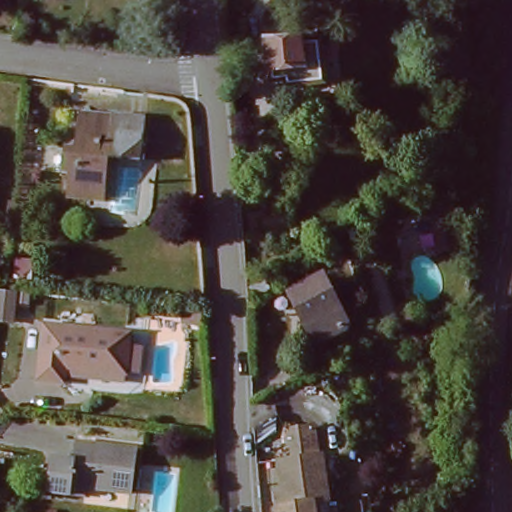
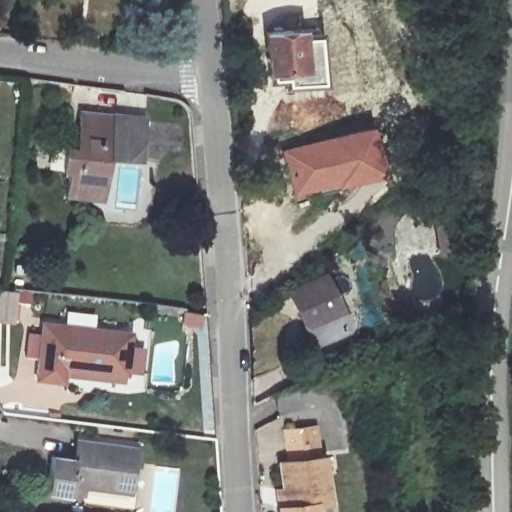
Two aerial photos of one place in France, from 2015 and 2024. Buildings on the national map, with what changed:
unchanged [(271,76),(266,36),(299,33),(302,73),(271,76)]
unchanged [(136,159),(102,155),(98,189),(86,188),(85,199),(64,197),(67,170),(60,170),(62,146),(73,149),(78,110),(141,119),(136,159)]
new [(373,122),(385,174),(325,189),(289,195),(277,149),(373,122)]
unchanged [(454,201),(457,253),(434,257),(430,206),(454,201)]
unchanged [(321,269),(349,327),(311,347),(283,290),(321,269)]
unchanged [(39,320),(122,332),(119,369),(60,361),(59,377),(33,374),(39,320)]
unchanged [(280,353),(282,373),(261,375),(260,355),(280,353)]
unchanged [(270,461),(278,460),(274,432),(305,427),(309,454),(312,453),(320,498),(308,500),(277,505),(270,461)]
unchanged [(51,456),(76,458),(79,441),(131,447),(125,490),(72,483),(69,500),(44,497),(51,456)]
unchanged [(309,512),(272,512),(271,505),(277,505),(308,500),(309,512)]

